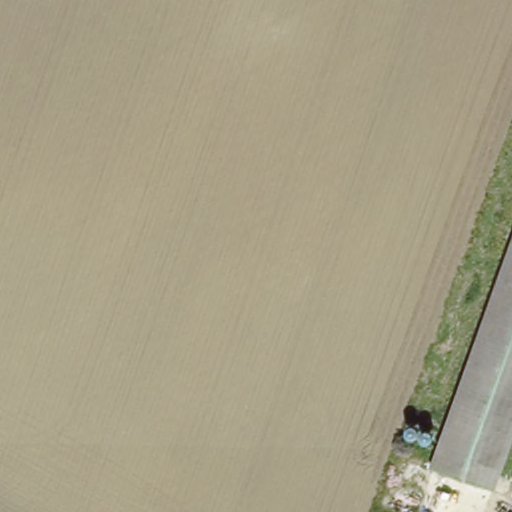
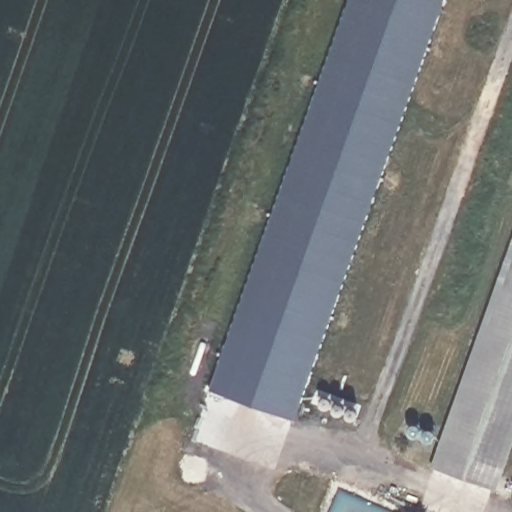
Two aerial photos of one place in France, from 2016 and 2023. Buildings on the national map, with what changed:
new [(444,0),(294,421),(209,391),(348,0),(444,0)]
unchanged [(487,489),(427,466),(429,460),(512,229),(512,419),(487,489)]

